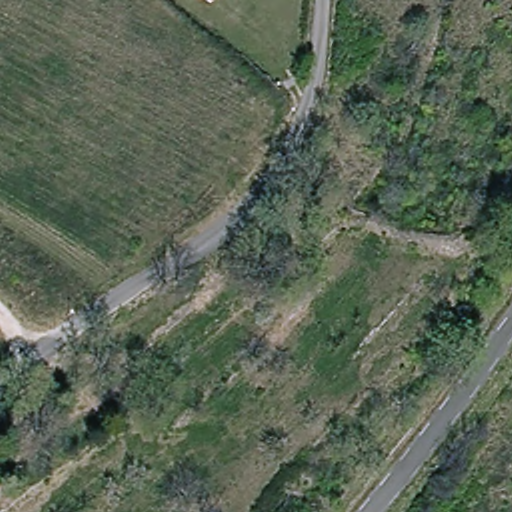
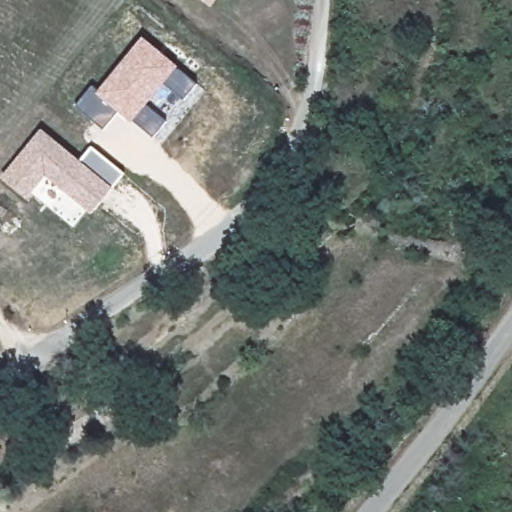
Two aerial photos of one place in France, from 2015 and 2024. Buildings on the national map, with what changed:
unchanged [(214,10),(199,0),(222,0),(214,10)]
new [(185,99),(166,84),(149,104),(168,120),(154,137),(134,121),(132,123),(119,112),(105,130),(76,106),(93,85),(100,91),(144,36),(180,66),(198,84),(185,99)]
new [(81,161),(86,155),(119,182),(93,214),(47,176),(28,199),(2,178),(42,128),(81,161)]

